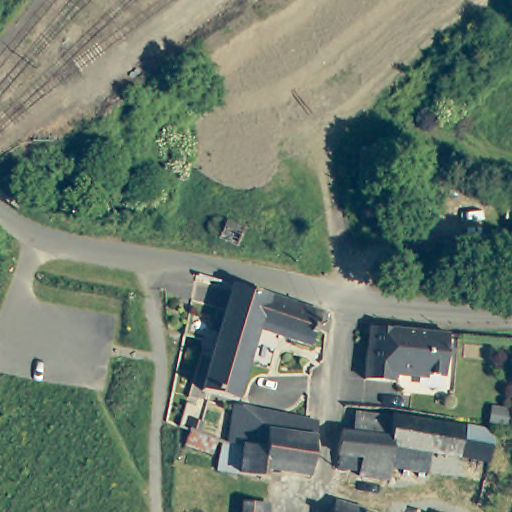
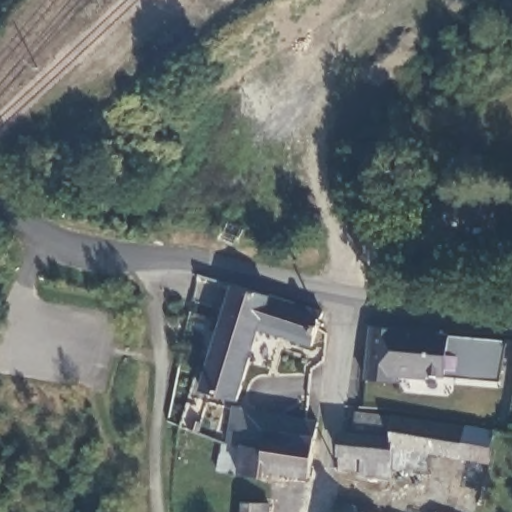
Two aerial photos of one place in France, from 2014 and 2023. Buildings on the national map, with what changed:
unchanged [(401,146),(405,216),(370,218),(367,148),(401,146)]
unchanged [(327,308),(323,322),(317,339),(265,324),(242,395),(206,385),(208,379),(237,280),(327,308)]
unchanged [(411,329),(453,333),(448,375),(425,373),(424,377),(401,374),(400,382),(371,378),(375,325),(411,329)]
new [(499,379),(448,375),(453,335),(506,340),(499,379)]
unchanged [(237,399),(322,418),(320,434),(235,417),(237,399)]
unchanged [(435,473),(396,468),(395,482),(363,477),(366,459),(343,455),(342,455),(346,432),(357,434),(360,411),(396,417),(396,413),(502,429),(497,461),(467,457),(438,453),(437,463),(435,473)]
unchanged [(232,439),(235,417),(320,434),(316,462),(314,471),(270,465),(268,474),(245,471),(241,469),(220,466),(226,439),(232,441),(232,439)]
unchanged [(369,502),(386,509),(386,512),(337,512),(340,497),(369,502)]
unchanged [(274,499),(274,512),(249,512),(249,498),(274,499)]

